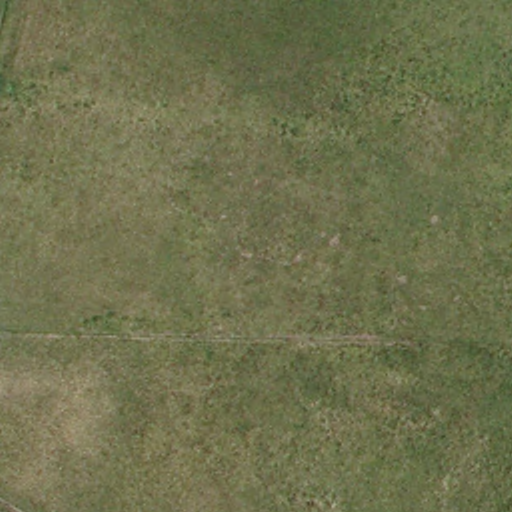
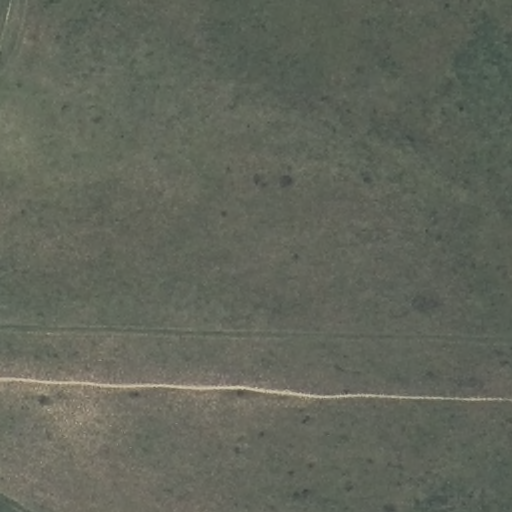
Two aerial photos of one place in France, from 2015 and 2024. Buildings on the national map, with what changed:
[]

